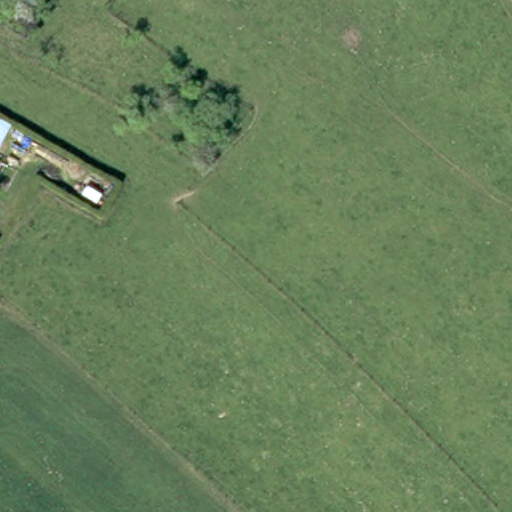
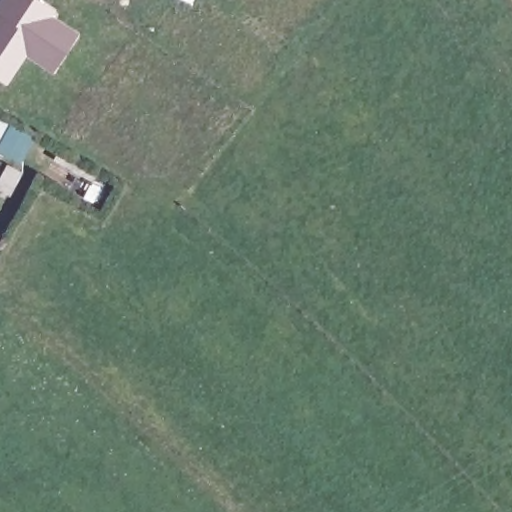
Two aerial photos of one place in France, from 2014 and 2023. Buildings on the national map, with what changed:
new [(0,79),(0,12),(0,11),(0,0),(39,0),(55,10),(52,15),(79,33),(55,71),(37,58),(34,62),(25,56),(7,84),(0,79)]
new [(36,136),(21,163),(21,171),(10,194),(0,189),(0,176),(10,156),(0,151),(0,117),(36,136)]

